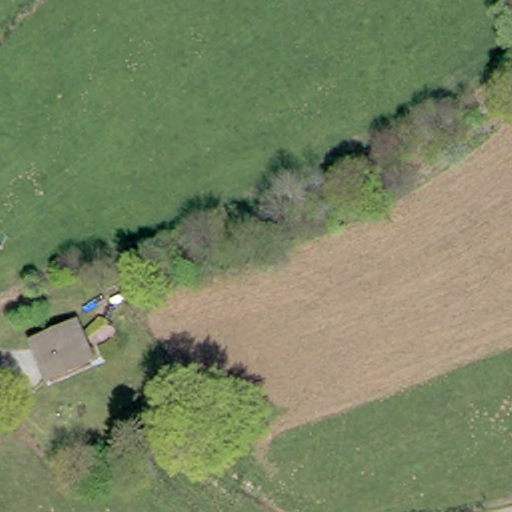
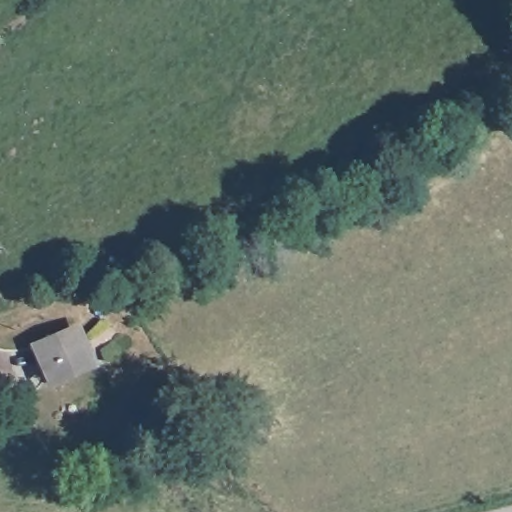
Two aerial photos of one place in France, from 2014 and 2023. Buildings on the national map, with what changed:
unchanged [(36,341),(71,324),(86,355),(50,372),(36,341)]

